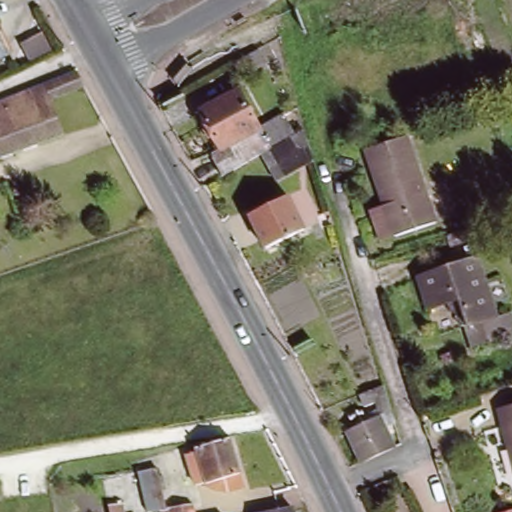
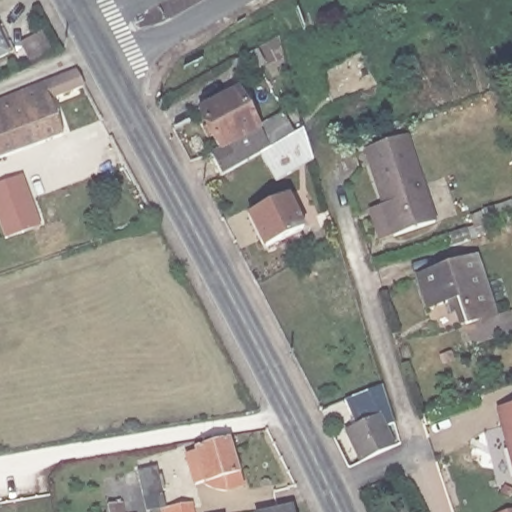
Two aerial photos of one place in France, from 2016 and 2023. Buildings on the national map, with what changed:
unchanged [(0,58),(0,41),(7,55),(0,58)]
unchanged [(264,66),(240,79),(232,64),(256,51),(264,66)]
unchanged [(62,135),(0,158),(0,103),(76,72),(84,87),(50,100),(62,135)]
unchanged [(219,178),(207,156),(218,150),(210,135),(206,138),(196,120),(201,117),(199,113),(234,94),(254,131),(282,115),(292,134),(264,149),(265,152),(259,155),(219,178)]
unchanged [(311,161),(274,182),(259,155),(265,152),(303,130),(309,152),(311,161)]
unchanged [(387,203),(370,151),(411,138),(427,190),(387,203)]
new [(0,184),(24,175),(42,225),(6,238),(0,223),(0,184)]
unchanged [(375,209),(387,205),(387,203),(427,190),(439,222),(397,235),(383,239),(375,209)]
unchanged [(307,229),(269,248),(252,215),(291,197),(307,229)]
unchanged [(464,230),(467,240),(447,246),(445,236),(464,230)]
unchanged [(502,334),(475,343),(462,300),(431,309),(422,278),(480,260),(502,334)]
unchanged [(353,469),(339,438),(372,423),(366,409),(359,413),(354,401),(377,391),(388,428),(389,431),(380,435),(388,452),(353,469)]
unchanged [(495,414),(512,409),(512,470),(500,431),(495,414)]
unchanged [(194,460),(202,458),(200,449),(234,440),(247,487),(230,492),(227,480),(210,485),(207,478),(200,481),(194,460)]
unchanged [(156,469),(157,476),(162,476),(165,491),(162,491),(166,509),(191,505),(192,512),(148,512),(139,472),(144,471),(156,469)]
unchanged [(109,506),(121,504),(122,512),(109,512),(109,506)]
unchanged [(291,512),(266,512),(290,508),(291,512)]

